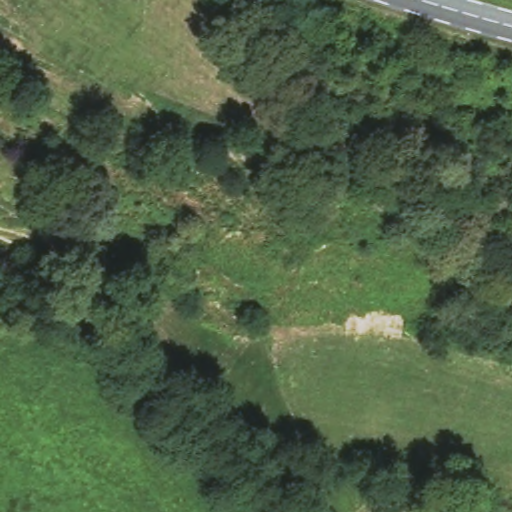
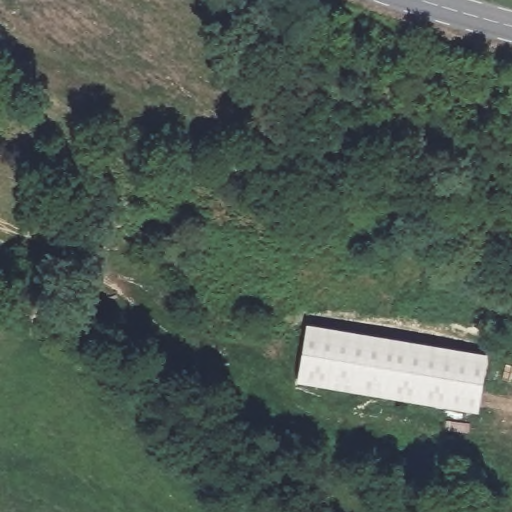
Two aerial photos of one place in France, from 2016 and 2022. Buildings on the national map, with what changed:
new [(308,327),(488,359),(479,415),(298,384),(308,327)]

